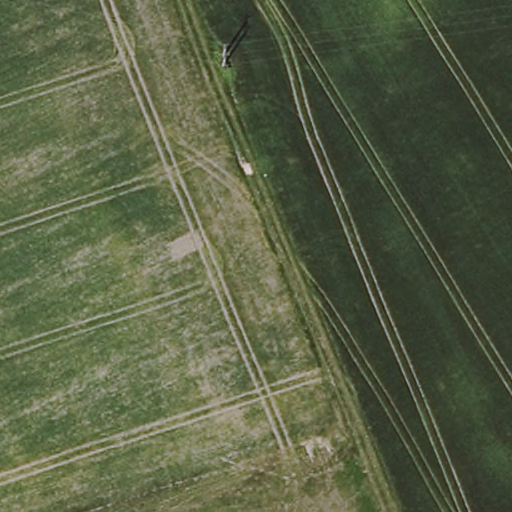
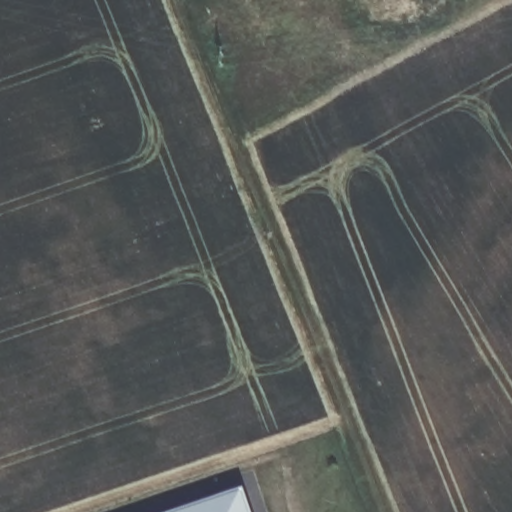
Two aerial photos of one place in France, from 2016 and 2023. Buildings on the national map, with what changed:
new [(252,512),(178,512),(245,489),(252,512)]

